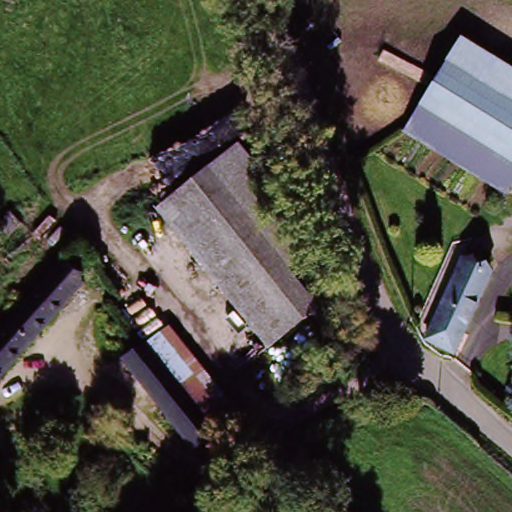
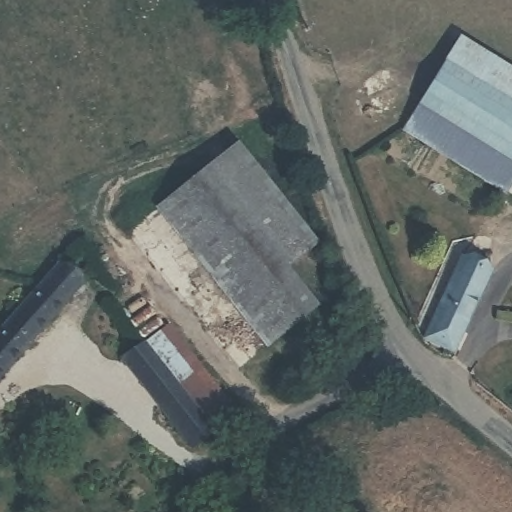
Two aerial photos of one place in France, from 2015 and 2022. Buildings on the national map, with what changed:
unchanged [(403,137),(455,44),(512,75),(512,191),(508,197),(403,137)]
unchanged [(248,146),(315,255),(264,286),(196,179),(248,146)]
unchanged [(290,328),(255,350),(162,200),(196,179),(264,286),(290,328)]
unchanged [(449,257),(470,266),(440,348),(419,341),(449,257)]
unchanged [(61,268),(84,289),(0,380),(0,334),(61,268)]
unchanged [(204,435),(177,392),(145,340),(170,323),(230,419),(204,435)]
unchanged [(120,357),(145,340),(177,392),(152,408),(120,357)]
unchanged [(204,435),(179,451),(152,408),(177,392),(204,435)]

